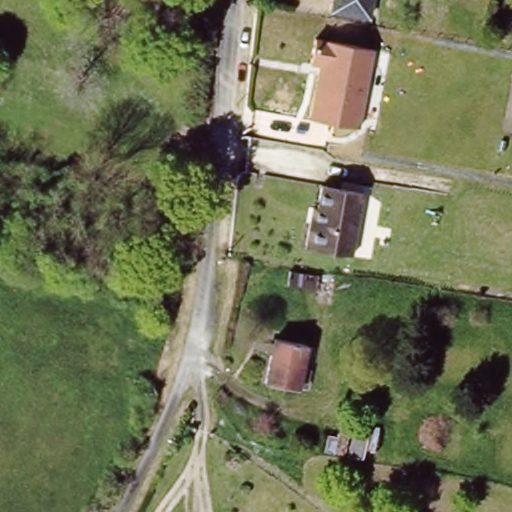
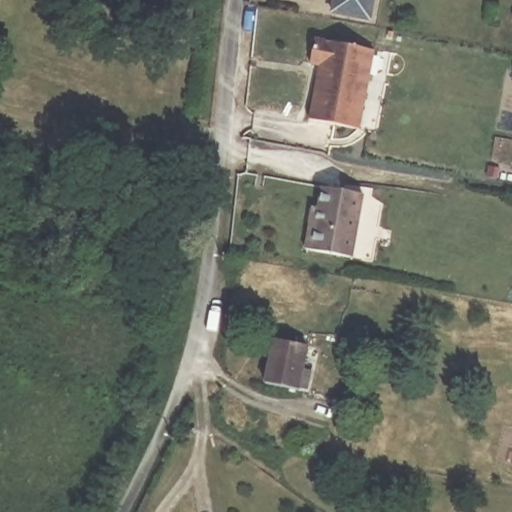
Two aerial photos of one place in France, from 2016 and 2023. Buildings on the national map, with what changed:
unchanged [(372,19),(334,12),(337,0),(375,0),(372,19)]
unchanged [(313,121),(322,67),(313,65),(317,40),(376,51),(361,129),(313,121)]
unchanged [(361,195),(349,257),(304,249),(308,223),(311,209),(316,210),(320,188),(361,195)]
unchanged [(274,355),(276,340),(311,347),(302,391),(268,384),(274,355)]
unchanged [(353,430),(379,436),(376,452),(364,450),(363,458),(348,455),(353,430)]
unchanged [(328,436),(336,438),(337,433),(347,434),(343,454),(325,452),(328,436)]

